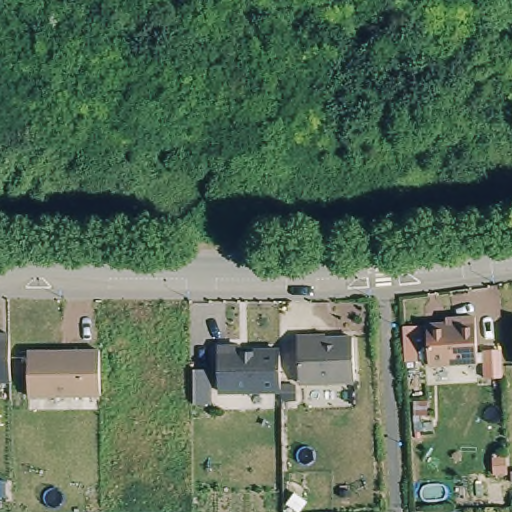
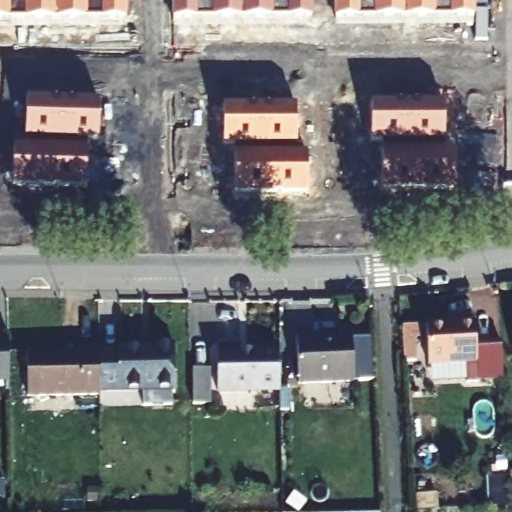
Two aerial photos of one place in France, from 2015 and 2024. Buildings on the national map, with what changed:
new [(126,20),(0,21),(0,0),(126,0),(126,20)]
new [(172,19),(172,0),(312,0),(312,20),(172,19)]
new [(335,19),(334,0),(475,0),(475,18),(335,19)]
new [(14,145),(25,146),(26,98),(99,100),(98,141),(87,141),(86,188),(13,187),(14,145)]
new [(382,142),(370,142),(370,100),(445,100),(444,149),(455,150),(455,190),(383,188),(382,142)]
new [(235,146),(222,146),(222,103),(297,105),(296,152),(307,153),(307,193),(235,193),(235,146)]
unchanged [(431,379),(430,365),(426,324),(457,323),(457,318),(475,317),(475,339),(477,363),(467,363),(467,377),(431,379)]
unchanged [(420,325),(422,360),(405,361),(402,326),(420,325)]
unchanged [(10,380),(0,381),(0,334),(8,334),(10,380)]
unchanged [(296,336),(325,335),(325,338),(370,336),(373,379),(354,378),(354,381),(337,382),(299,384),(296,336)]
new [(118,352),(118,349),(150,349),(150,347),(174,346),(175,391),(172,391),(172,406),(142,406),(142,391),(100,392),(100,352),(118,352)]
unchanged [(280,380),(280,390),(230,391),(217,391),(216,352),(222,347),(235,346),(240,352),(277,351),(279,351),(280,380)]
unchanged [(99,364),(100,396),(28,397),(27,352),(99,350),(99,364)]

